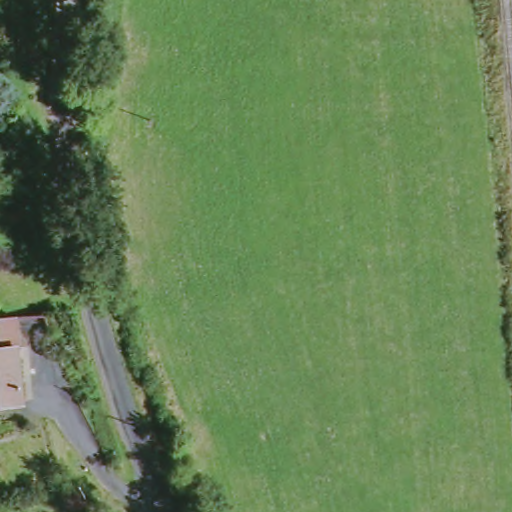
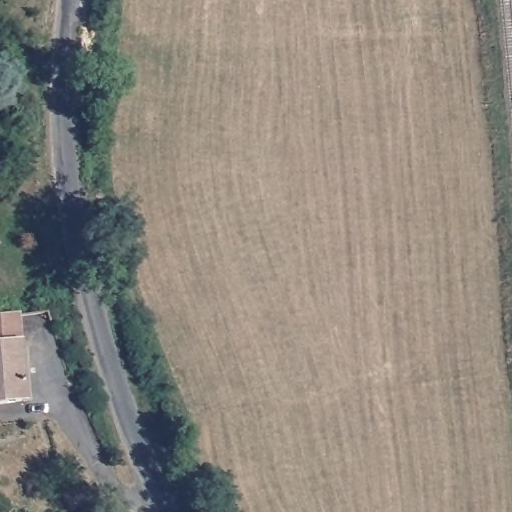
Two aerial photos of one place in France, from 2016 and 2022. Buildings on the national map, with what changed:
unchanged [(0,401),(0,318),(15,316),(25,397),(0,401)]
unchanged [(68,508),(61,492),(77,484),(84,499),(68,508)]

